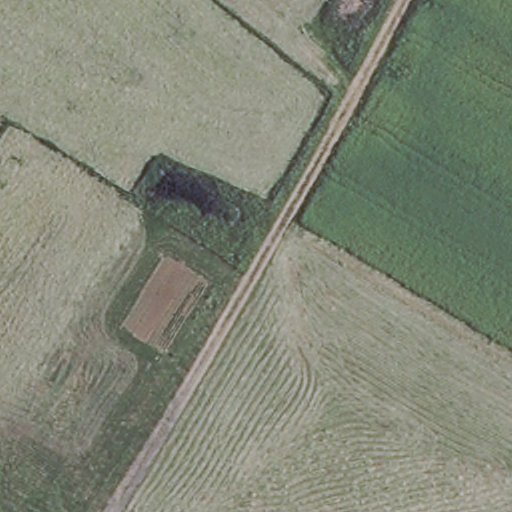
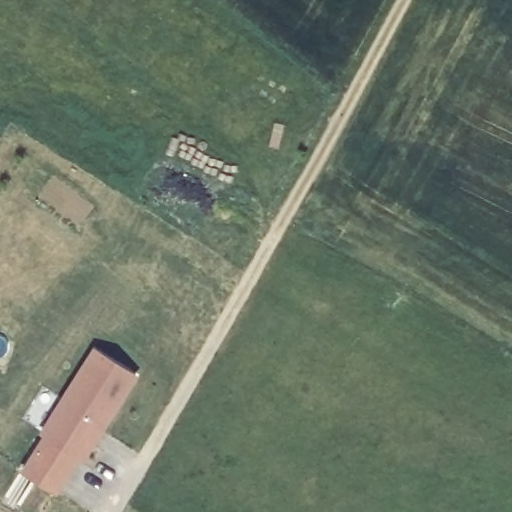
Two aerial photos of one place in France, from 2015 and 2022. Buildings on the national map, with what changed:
new [(139,374),(84,463),(79,459),(58,496),(20,472),(43,436),(38,434),(93,348),(139,374)]

